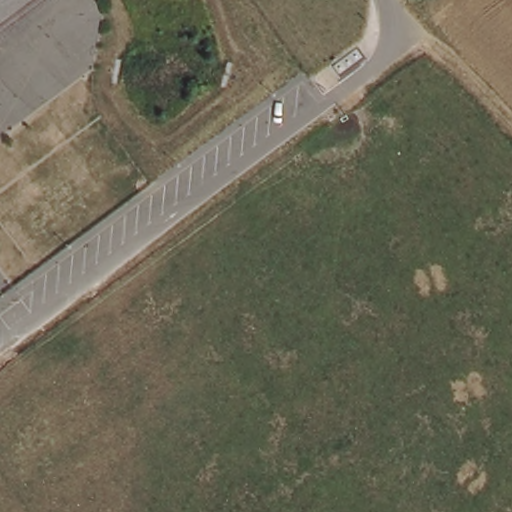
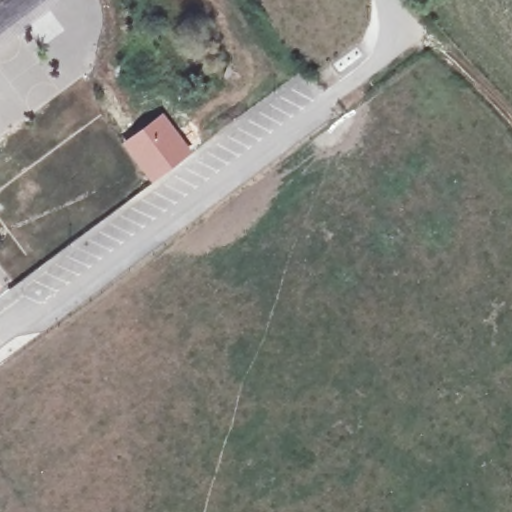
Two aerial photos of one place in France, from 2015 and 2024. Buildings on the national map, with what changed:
unchanged [(0,0),(48,0),(0,36),(0,0)]
new [(163,111),(194,152),(152,183),(122,142),(163,111)]

